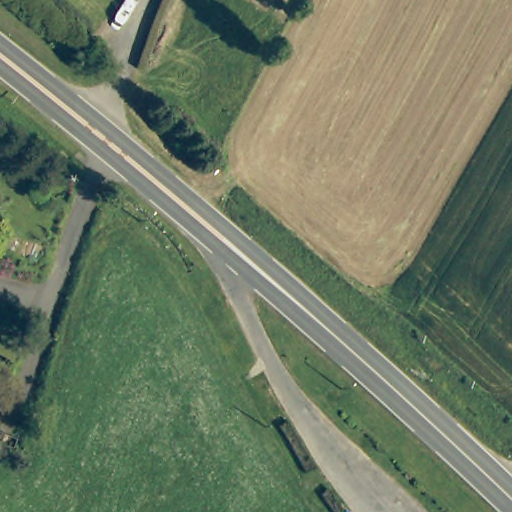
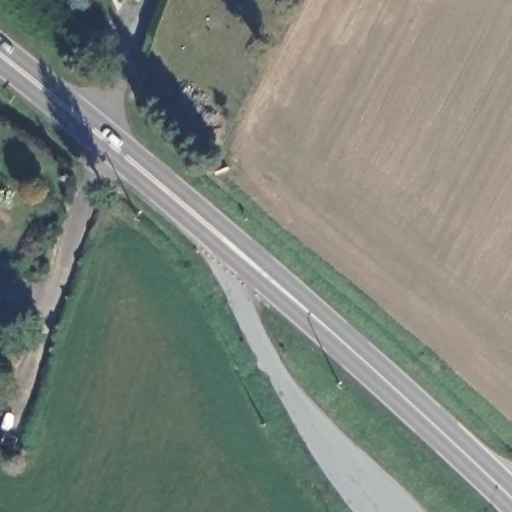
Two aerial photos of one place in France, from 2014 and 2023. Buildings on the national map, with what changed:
[]

